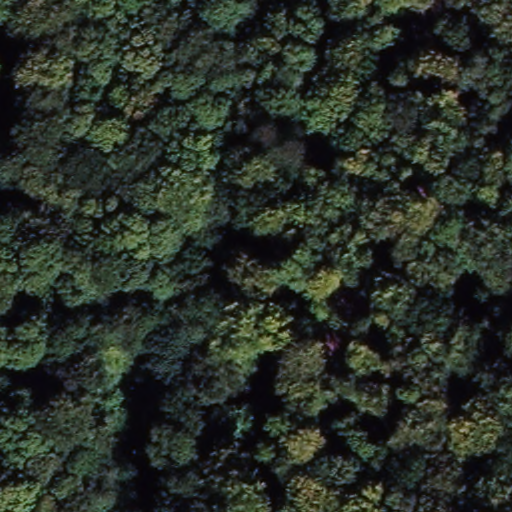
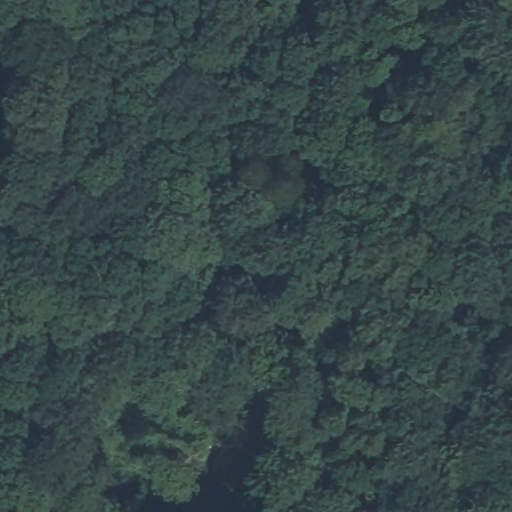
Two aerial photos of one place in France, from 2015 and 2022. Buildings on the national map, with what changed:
[]

